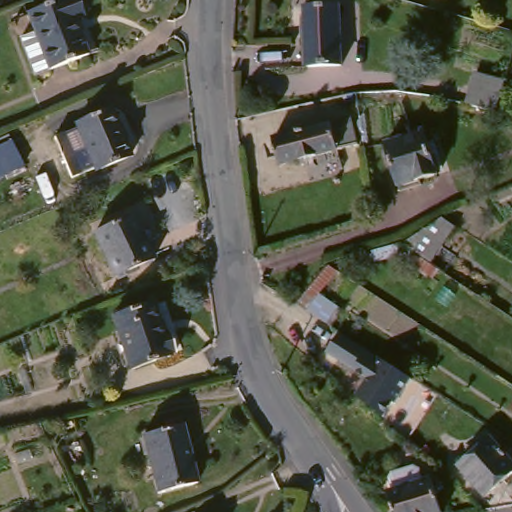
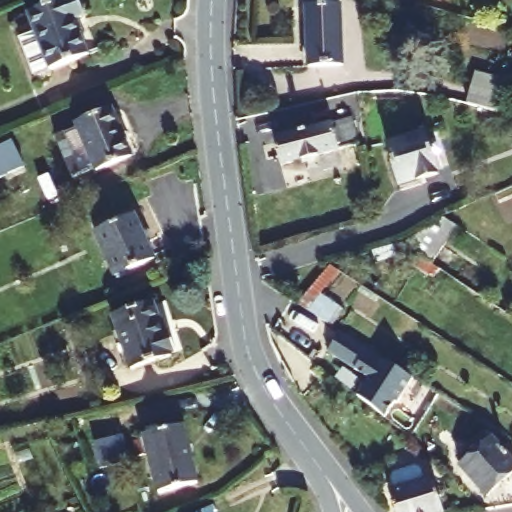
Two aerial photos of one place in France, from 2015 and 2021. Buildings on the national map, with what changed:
unchanged [(77,0),(82,14),(97,50),(85,55),(31,76),(17,37),(32,31),(25,12),(56,0),(77,0)]
unchanged [(337,6),(340,30),(341,53),(342,64),(323,65),(308,66),(306,36),(305,14),(304,8),(337,6)]
unchanged [(502,83),(496,113),(466,107),(471,75),(502,83)]
unchanged [(280,166),(275,149),(264,151),(261,142),(271,139),(270,133),(278,131),(277,128),(301,122),(299,114),(325,106),(330,124),(351,118),(356,141),(336,147),(337,151),(310,158),(302,160),(280,166)]
unchanged [(84,124),(117,110),(137,156),(105,172),(104,167),(79,179),(63,140),(85,129),(84,124)]
unchanged [(405,142),(425,135),(427,139),(430,150),(436,148),(441,162),(444,171),(438,172),(440,177),(425,182),(426,187),(405,194),(396,170),(390,147),(405,142)]
unchanged [(20,169),(0,176),(0,153),(13,148),(20,169)]
unchanged [(58,179),(43,186),(35,160),(50,154),(58,179)]
unchanged [(512,196),(512,201),(510,197),(512,196)]
unchanged [(415,266),(406,259),(401,256),(374,263),(370,253),(402,244),(438,217),(457,231),(445,248),(456,257),(446,272),(434,264),(426,273),(415,266)]
unchanged [(151,260),(110,278),(91,235),(131,218),(151,260)]
unchanged [(288,299),(290,297),(310,274),(324,259),(333,265),(316,285),(313,288),(298,305),(288,299)]
unchanged [(144,307),(156,301),(176,348),(162,354),(164,358),(127,373),(105,318),(141,304),(144,307)]
unchanged [(345,329),(417,376),(401,401),(399,399),(388,415),(382,410),(361,393),(360,392),(372,375),(331,348),(345,329)]
unchanged [(195,483),(156,491),(145,433),(182,426),(195,483)]
unchanged [(476,452),(485,445),(490,440),(502,452),(510,444),(512,447),(512,475),(495,489),(485,498),(472,484),(459,471),(457,469),(468,459),(476,452)]
unchanged [(394,496),(390,485),(393,479),(413,472),(420,475),(423,486),(430,484),(439,512),(392,512),(387,498),(394,496)]

